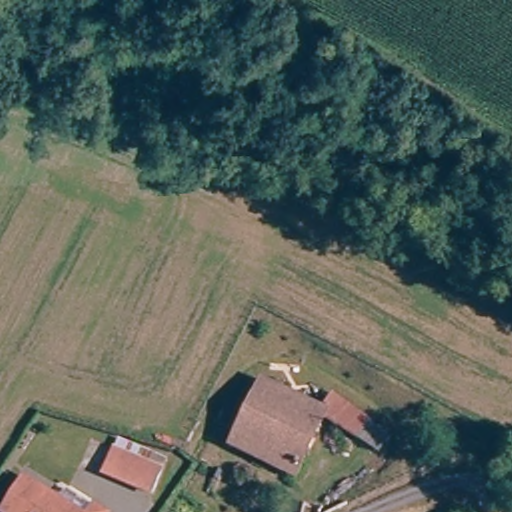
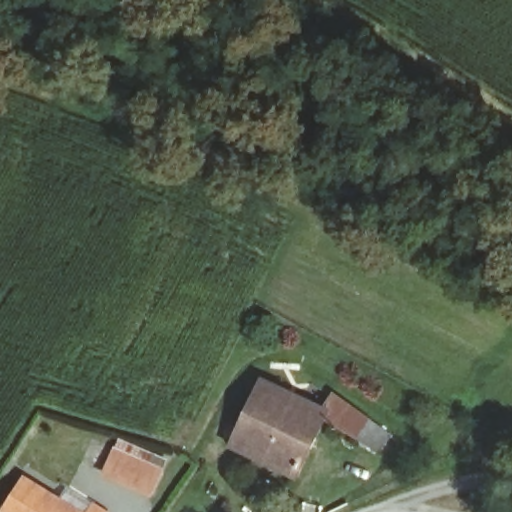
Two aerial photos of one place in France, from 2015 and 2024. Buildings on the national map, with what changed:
unchanged [(397,443),(392,457),(319,422),(286,481),(221,448),(255,383),(277,393),(287,379),(325,398),(357,413),(397,443)]
unchanged [(119,439),(168,461),(150,497),(102,478),(119,439)]
unchanged [(0,509),(22,475),(64,502),(71,489),(106,512),(0,512),(0,509)]

